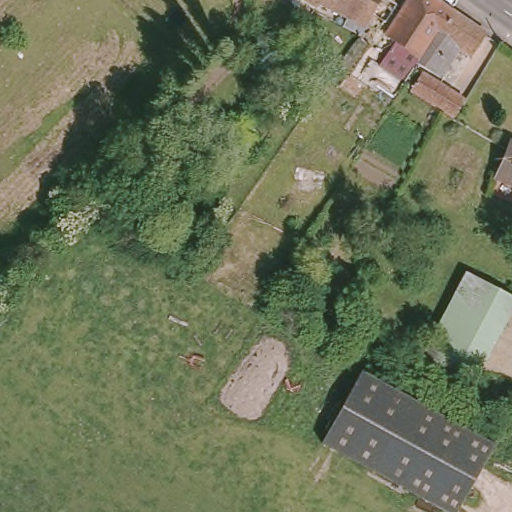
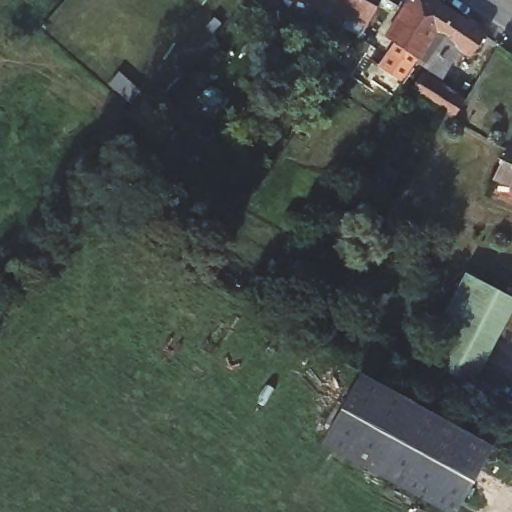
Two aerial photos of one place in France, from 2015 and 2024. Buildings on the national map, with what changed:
unchanged [(341,22),(348,10),(313,0),(389,0),(371,36),(341,22)]
unchanged [(435,58),(389,24),(405,0),(444,0),(463,13),(446,44),(435,58)]
unchanged [(496,36),(483,60),(474,55),(464,70),(449,59),(455,49),(446,44),(463,13),(496,36)]
unchanged [(459,95),(452,109),(438,100),(412,81),(419,69),(445,86),(459,95)]
unchanged [(512,176),(496,166),(512,138),(512,176)]
unchanged [(195,202),(206,209),(201,219),(188,210),(195,202)]
unchanged [(512,298),(512,301),(483,376),(434,356),(464,278),(512,298)]
unchanged [(494,439),(454,509),(327,439),(366,367),(494,439)]

